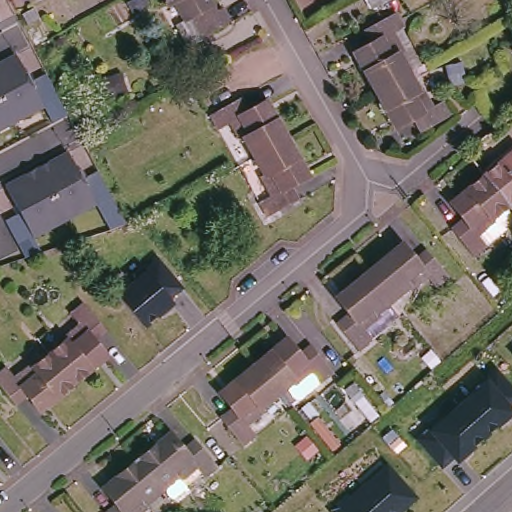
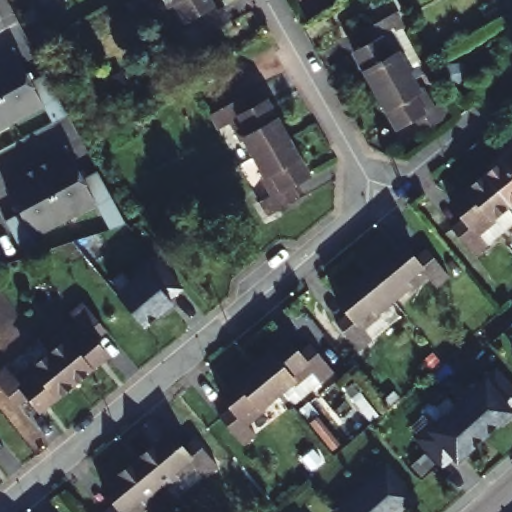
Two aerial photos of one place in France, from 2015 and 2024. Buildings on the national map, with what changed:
unchanged [(221,7),(229,20),(200,35),(190,17),(185,19),(175,1),(169,4),(166,0),(210,0),(215,10),(221,7)]
unchanged [(368,0),(388,0),(373,9),(368,0)]
unchanged [(349,53),(368,42),(360,26),(390,10),(398,25),(387,31),(400,52),(396,54),(405,70),(370,89),(349,53)]
unchanged [(28,79),(42,72),(64,113),(50,120),(42,106),(0,127),(0,58),(13,51),(28,79)]
unchanged [(440,99),(448,113),(418,130),(411,117),(391,127),(370,89),(405,70),(415,89),(418,86),(430,105),(440,99)]
unchanged [(218,94),(193,108),(186,95),(210,81),(218,94)]
unchanged [(246,134),(243,136),(231,116),(220,123),(210,106),(240,91),(248,105),(267,96),(288,133),(256,150),(246,134)]
unchanged [(288,133),(309,169),(291,180),(298,194),(269,209),(261,196),(273,189),(262,170),(266,169),(256,150),(288,133)]
unchanged [(512,144),(512,193),(505,199),(480,170),(512,144)]
unchanged [(65,150),(77,174),(95,167),(123,220),(107,230),(91,204),(16,240),(2,216),(15,210),(3,180),(65,150)]
unchanged [(491,215),(475,229),(483,239),(468,251),(446,224),(460,213),(447,198),(480,170),(505,199),(488,212),(491,215)]
unchanged [(402,239),(416,254),(428,244),(450,270),(438,280),(429,270),(412,284),(410,282),(393,295),(370,265),(402,239)]
unchanged [(183,290),(134,329),(113,302),(162,264),(183,290)]
unchanged [(393,295),(377,308),(380,310),(364,324),(373,334),(359,347),(337,319),(350,308),(337,292),(370,265),(393,295)]
unchanged [(45,356),(62,342),(59,339),(76,324),(67,314),(80,303),(102,329),(89,340),(102,357),(69,384),(45,356)]
unchanged [(280,334),(295,350),(308,339),(330,366),(315,377),(306,367),(290,380),(288,378),(271,391),(247,361),(280,334)]
unchanged [(506,349),(512,344),(512,356),(506,349)]
unchanged [(45,356),(69,384),(36,411),(23,395),(10,405),(0,392),(0,369),(1,368),(11,379),(26,366),(30,369),(45,356)]
unchanged [(271,391),(255,404),(258,407),(241,421),(250,432),(238,442),(216,415),(228,405),(215,389),(247,361),(271,391)]
unchanged [(440,469),(410,435),(491,363),(512,386),(512,407),(440,469)]
unchanged [(166,429),(180,444),(192,434),(215,461),(201,472),(192,461),(174,476),(172,474),(156,486),(132,457),(166,429)]
unchanged [(156,486),(141,499),(143,501),(130,512),(101,512),(100,511),(112,500),(99,484),(132,457),(156,486)]
unchanged [(399,512),(329,512),(328,511),(385,461),(416,497),(399,512)]

